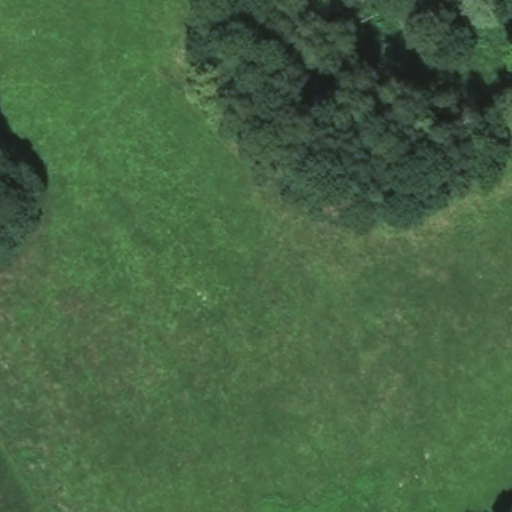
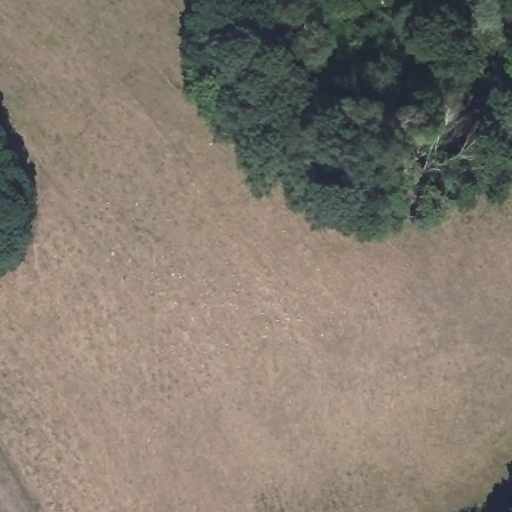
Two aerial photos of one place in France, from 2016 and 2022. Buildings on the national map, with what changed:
unchanged [(0,152),(0,144),(3,147),(0,152)]

